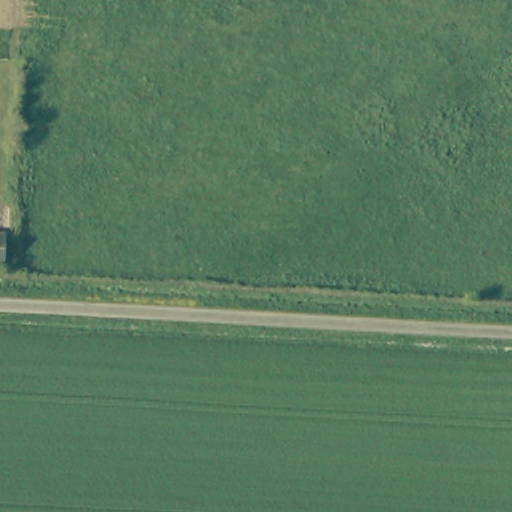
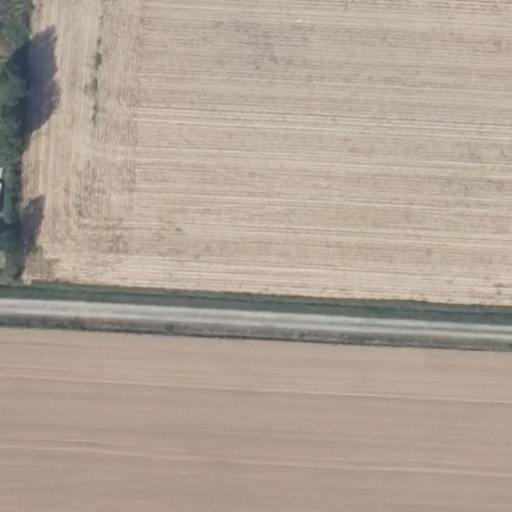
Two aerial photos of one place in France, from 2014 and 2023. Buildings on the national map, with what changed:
unchanged [(5,264),(0,264),(0,235),(6,235),(5,264)]

